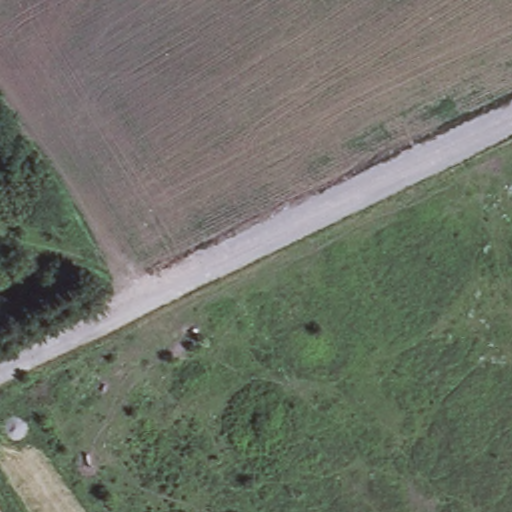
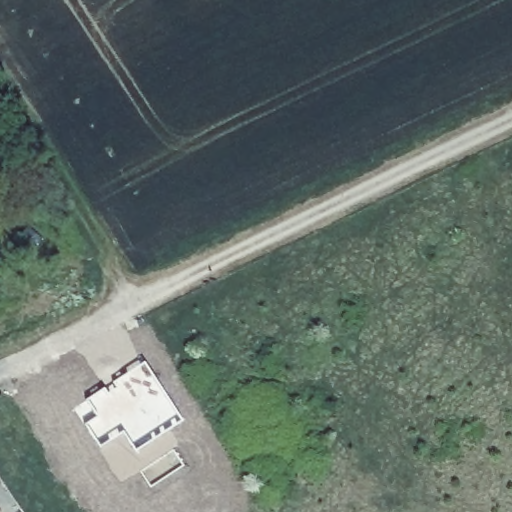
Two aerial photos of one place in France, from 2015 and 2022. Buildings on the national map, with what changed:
new [(146,364),(183,422),(137,451),(123,432),(100,448),(83,422),(98,417),(87,397),(146,364)]

